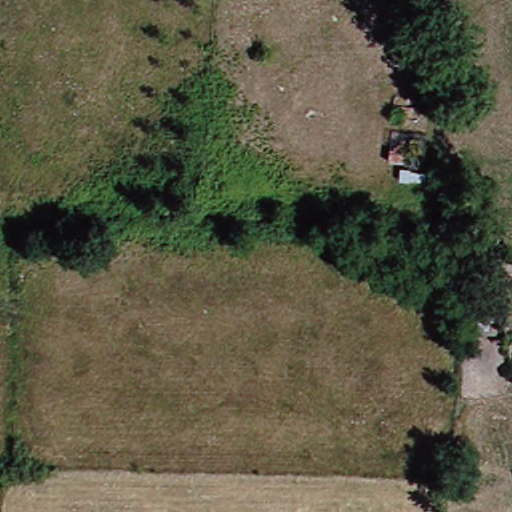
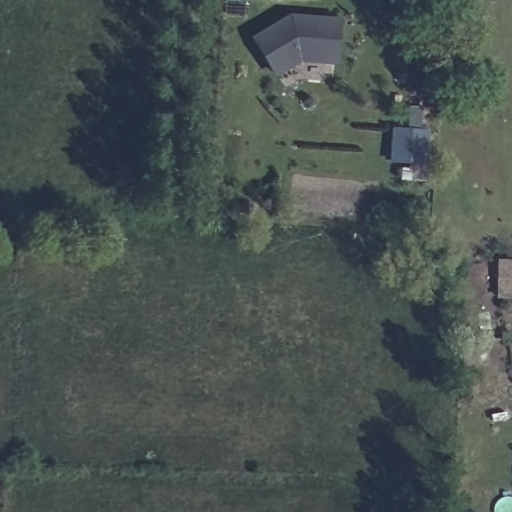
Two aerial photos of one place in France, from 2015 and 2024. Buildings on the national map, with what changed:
new [(337,67),(299,64),(273,79),(249,40),(289,16),(340,20),(337,67)]
new [(402,181),(401,165),(389,164),(391,129),(431,131),(426,183),(402,181)]

